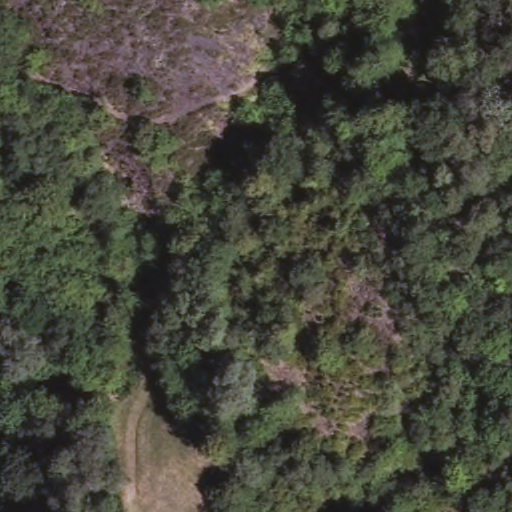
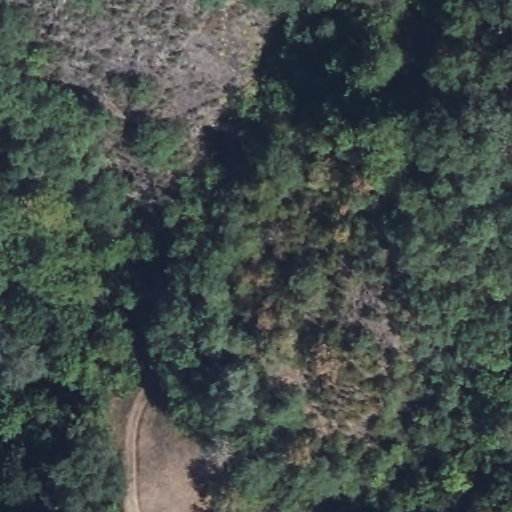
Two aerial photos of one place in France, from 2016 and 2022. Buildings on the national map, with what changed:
[]

